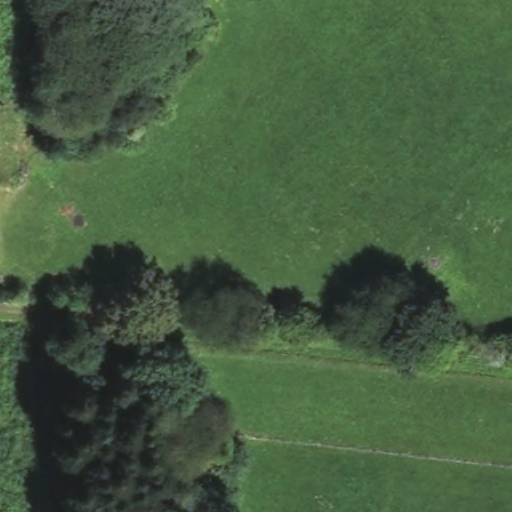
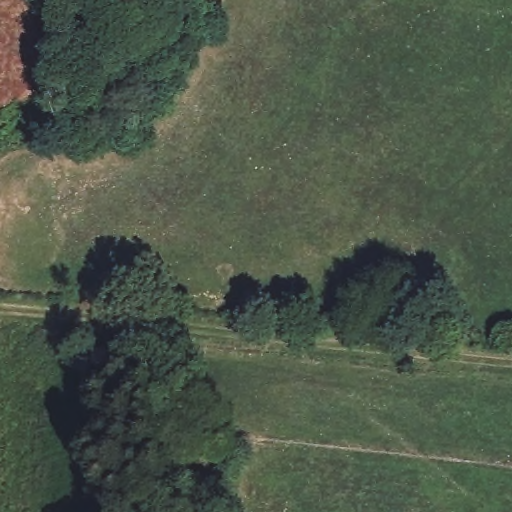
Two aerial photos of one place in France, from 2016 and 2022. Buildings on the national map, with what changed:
[]

